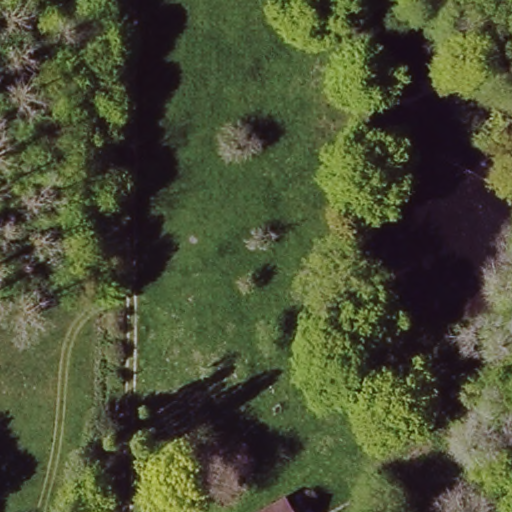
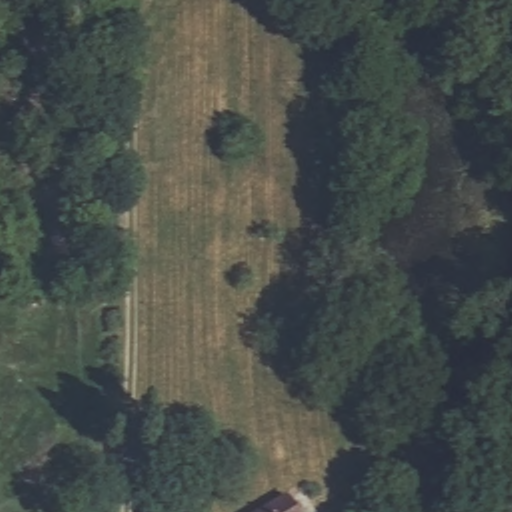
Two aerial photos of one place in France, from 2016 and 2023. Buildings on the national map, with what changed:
unchanged [(300,512),(253,512),(289,492),(300,512)]

